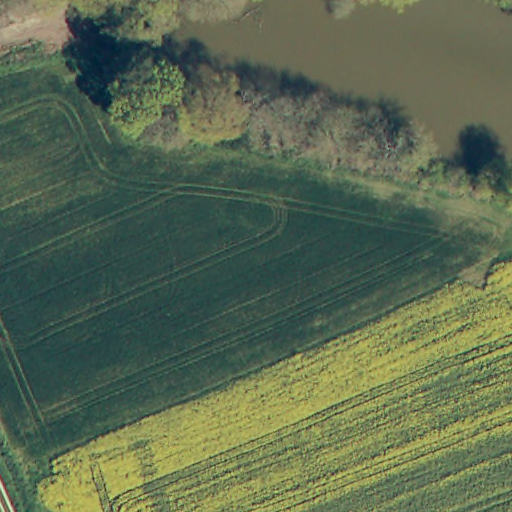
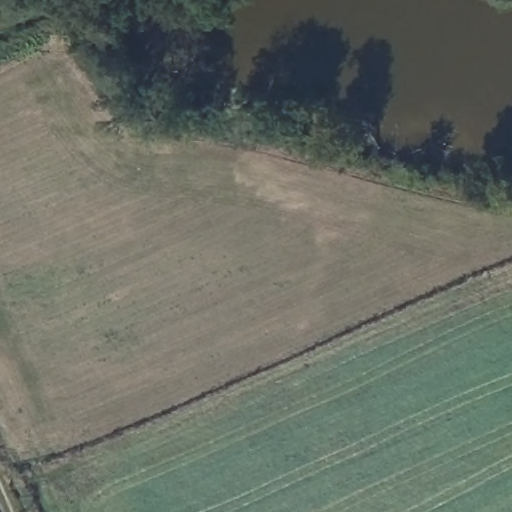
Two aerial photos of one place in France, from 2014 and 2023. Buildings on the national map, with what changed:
[]

